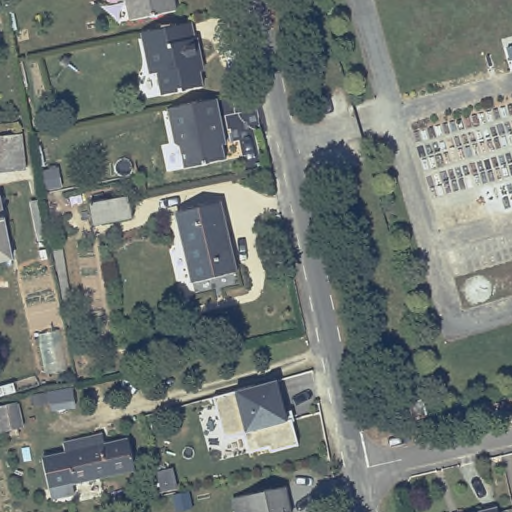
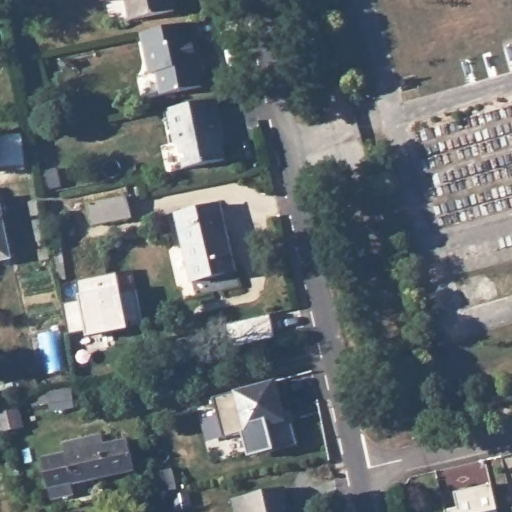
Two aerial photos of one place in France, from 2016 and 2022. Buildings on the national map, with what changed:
unchanged [(127,3),(125,3),(125,0),(178,0),(180,11),(153,17),(131,21),(127,3)]
unchanged [(204,65),(200,67),(206,96),(166,104),(161,80),(152,83),(143,39),(193,29),(196,44),(199,44),(204,65)]
unchanged [(3,93),(7,113),(0,114),(0,93),(3,93)]
unchanged [(223,149),(227,166),(186,174),(185,171),(180,153),(175,148),(167,113),(217,103),(226,139),(228,148),(223,149)]
unchanged [(26,132),(30,169),(0,172),(0,135),(26,132)]
unchanged [(89,205),(126,198),(131,218),(93,226),(89,205)]
unchanged [(10,259),(0,262),(0,206),(10,259)]
unchanged [(176,215),(220,206),(235,271),(191,281),(176,215)]
new [(79,294),(76,279),(116,272),(120,292),(136,289),(142,322),(131,324),(131,322),(69,333),(62,298),(79,294)]
unchanged [(287,423),(291,421),(298,447),(270,454),(269,449),(248,454),(243,434),(224,439),(213,399),(239,392),(276,382),(287,423)]
unchanged [(401,404),(419,399),(423,416),(404,420),(401,404)]
unchanged [(21,430),(1,434),(0,429),(0,407),(16,403),(21,430)]
unchanged [(62,449),(102,441),(104,449),(127,445),(133,475),(70,488),(62,449)]
unchanged [(288,512),(234,512),(232,502),(244,499),(284,492),(288,512)]
unchanged [(498,505),(500,512),(468,512),(498,505)]

